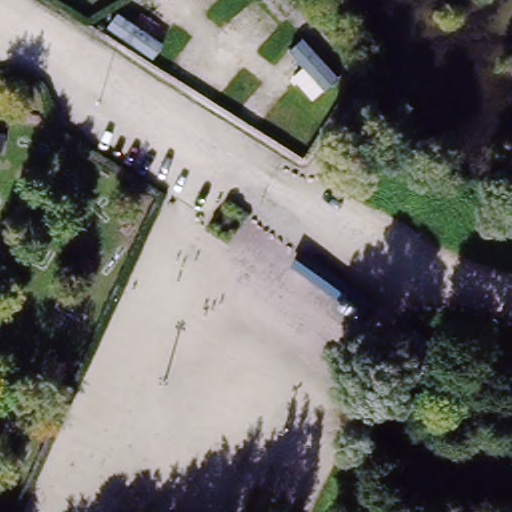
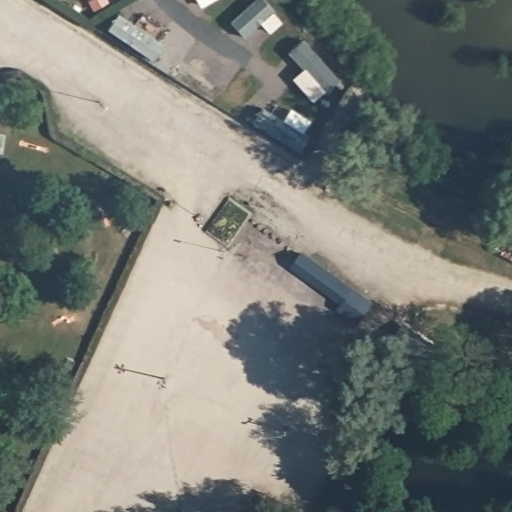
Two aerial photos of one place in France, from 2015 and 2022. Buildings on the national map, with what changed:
unchanged [(335,308),(343,298),(291,262),(303,246),(378,301),(360,325),(335,308)]
unchanged [(385,354),(402,323),(455,361),(435,388),(385,354)]

